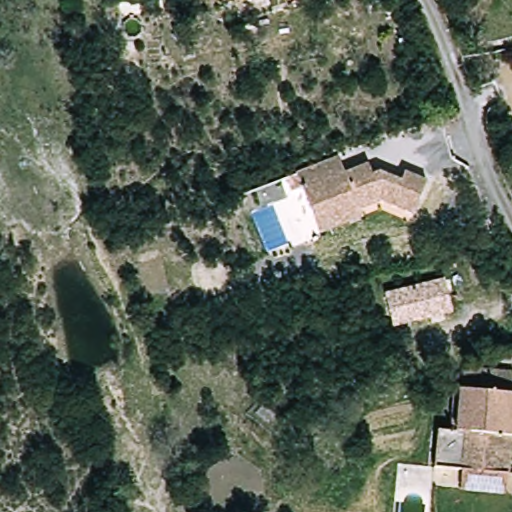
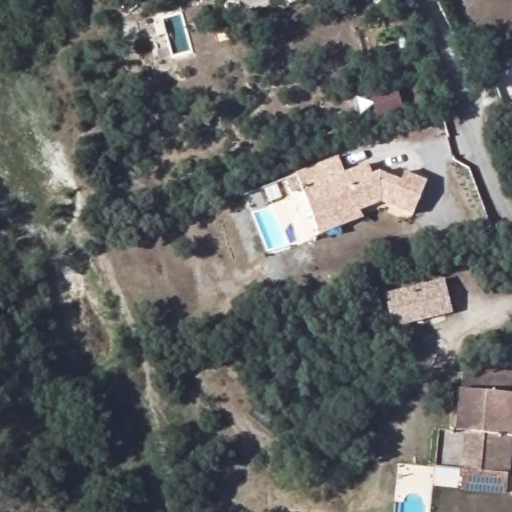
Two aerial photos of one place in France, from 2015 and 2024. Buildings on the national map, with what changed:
unchanged [(235,0),(243,0),(236,2),(235,0)]
unchanged [(286,0),(300,0),(289,6),(286,0)]
unchanged [(319,233),(314,218),(298,173),(339,157),(346,175),(359,170),(370,166),(373,176),(386,172),(407,182),(411,172),(431,182),(415,217),(387,202),(359,212),(362,218),(319,233)]
unchanged [(394,332),(385,297),(445,283),(453,318),(394,332)]
unchanged [(433,470),(438,432),(447,433),(452,391),(461,392),(464,372),(512,377),(512,440),(510,440),(506,480),(504,496),(458,491),(461,473),(433,470)]

